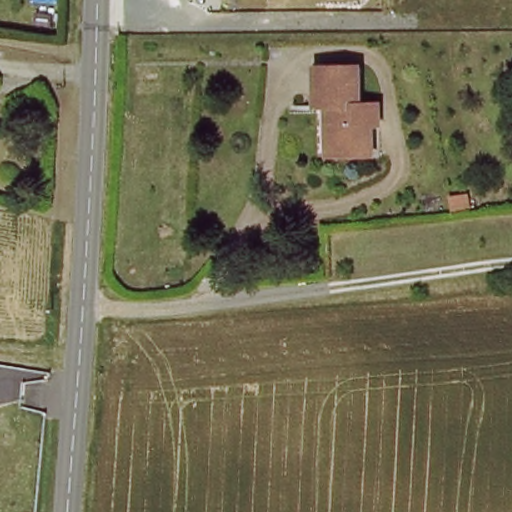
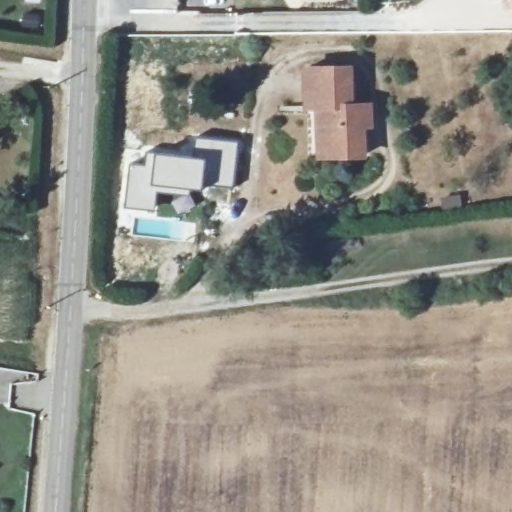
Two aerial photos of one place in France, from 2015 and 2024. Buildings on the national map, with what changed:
unchanged [(511,6),(510,0),(512,0),(512,6),(511,6)]
unchanged [(355,66),(359,105),(378,104),(377,124),(371,124),(373,153),(326,156),(321,108),(313,109),(311,66),(355,66)]
new [(196,136),(238,141),(233,188),(204,188),(206,156),(195,156),(196,136)]
new [(184,203),(183,191),(158,190),(156,210),(124,207),(129,162),(146,164),(147,151),(195,156),(206,156),(204,188),(190,190),(193,201),(184,203)]

